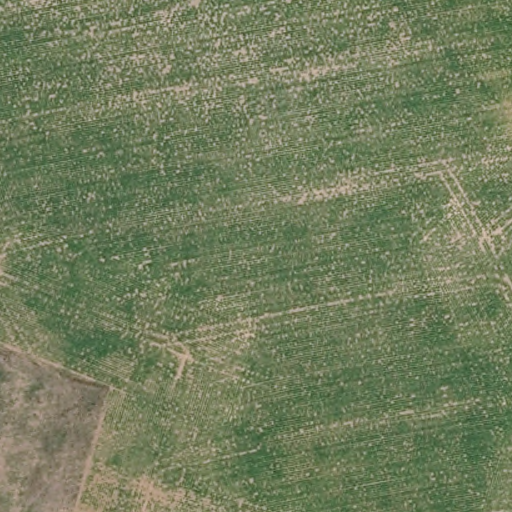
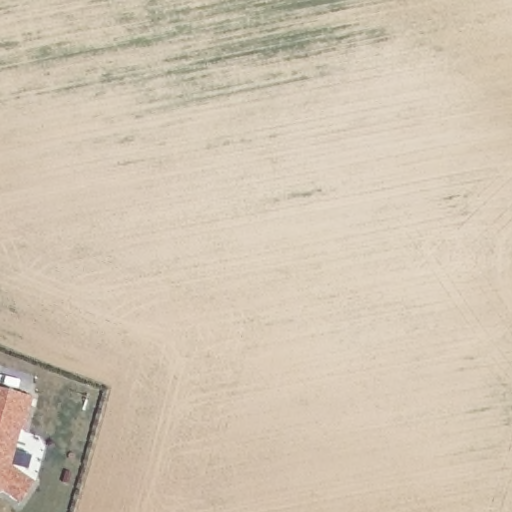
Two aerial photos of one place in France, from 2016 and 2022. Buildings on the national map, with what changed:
new [(26,434),(23,433),(12,471),(34,487),(22,502),(6,490),(0,492),(0,391),(35,401),(26,434)]

